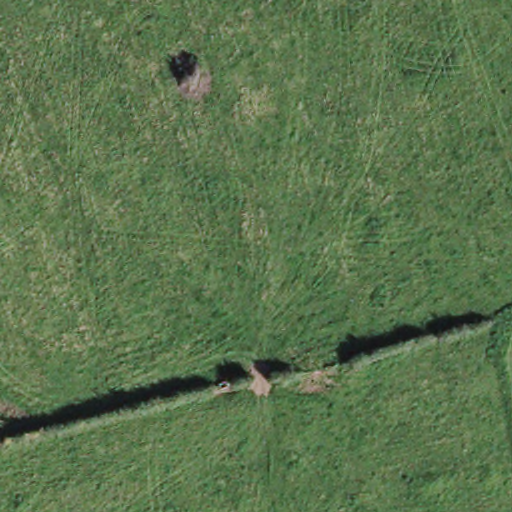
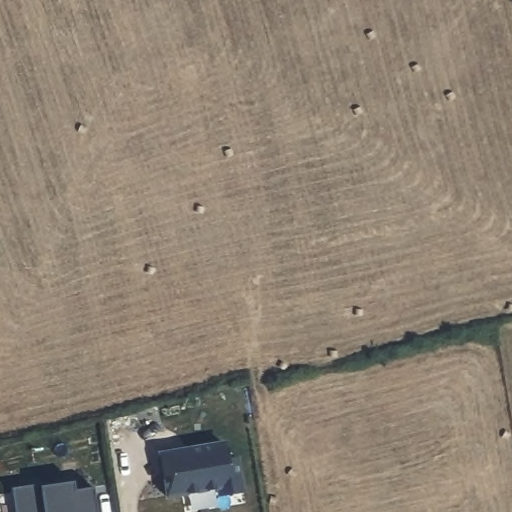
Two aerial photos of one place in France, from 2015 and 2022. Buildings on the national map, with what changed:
new [(227,438),(231,453),(237,455),(245,495),(220,498),(217,490),(166,496),(158,451),(227,438)]
new [(74,481),(76,491),(92,488),(97,512),(16,512),(12,488),(41,486),(74,481)]

